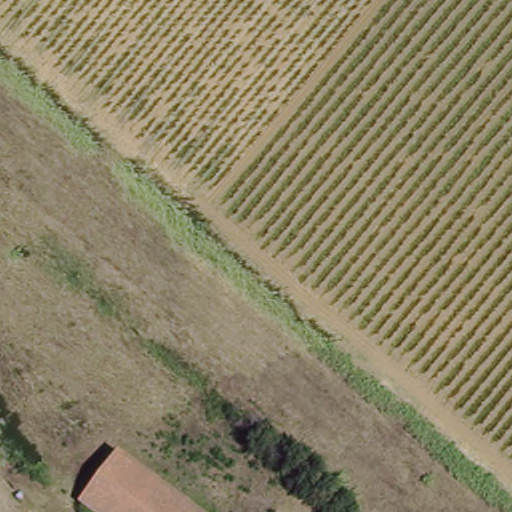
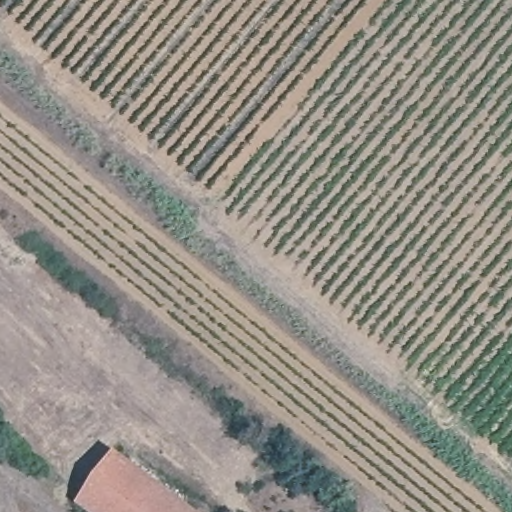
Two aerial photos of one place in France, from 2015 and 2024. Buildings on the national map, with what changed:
unchanged [(120,451),(202,512),(101,512),(84,499),(120,451)]

